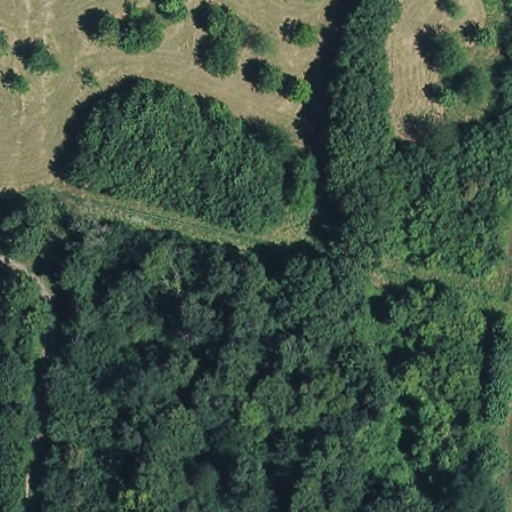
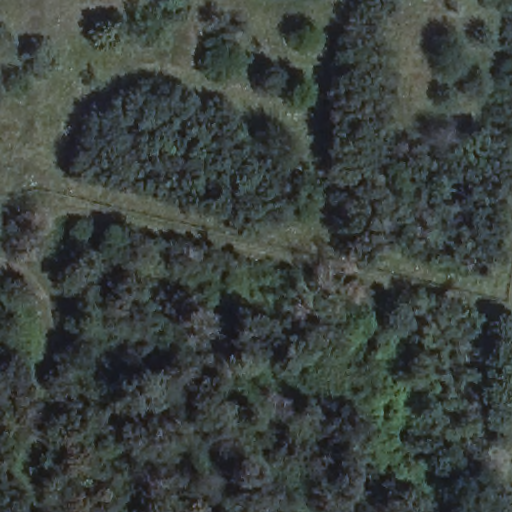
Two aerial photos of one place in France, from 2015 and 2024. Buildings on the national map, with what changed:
[]

